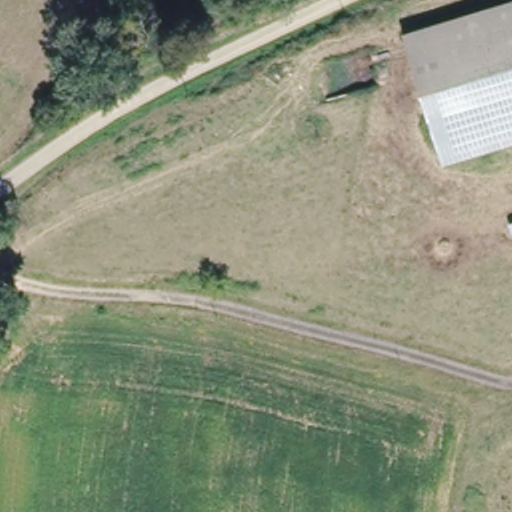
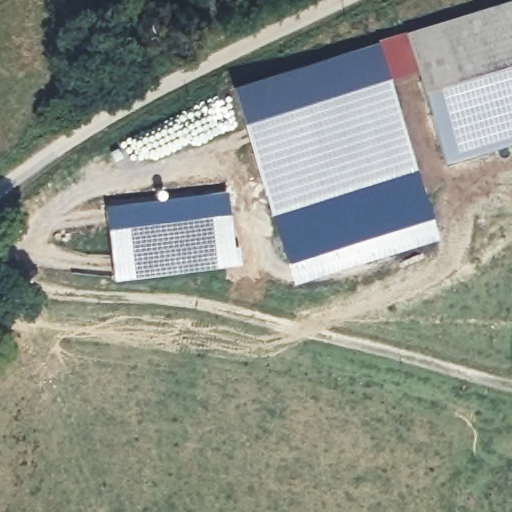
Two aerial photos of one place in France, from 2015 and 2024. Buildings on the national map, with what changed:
unchanged [(432,115),(407,34),(512,1),(512,91),(432,115)]
new [(379,50),(236,94),(233,84),(378,42),(377,38),(406,30),(407,34),(417,67),(387,77),(379,50)]
new [(379,50),(417,175),(273,219),(236,94),(379,50)]
unchanged [(447,165),(432,115),(512,91),(512,143),(447,165)]
new [(420,175),(439,238),(292,283),(273,219),(417,175),(420,175)]
new [(166,196),(226,191),(240,265),(112,280),(104,205),(166,196)]

